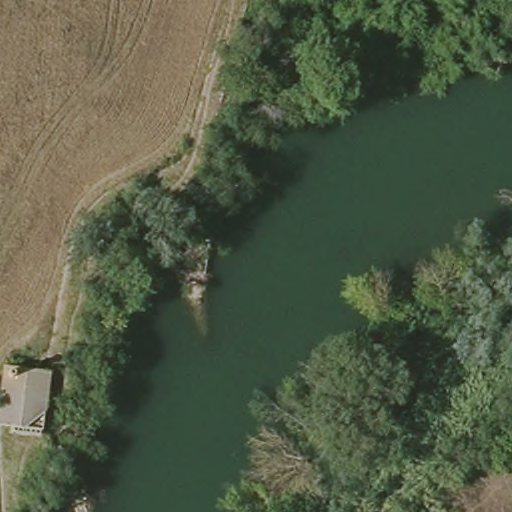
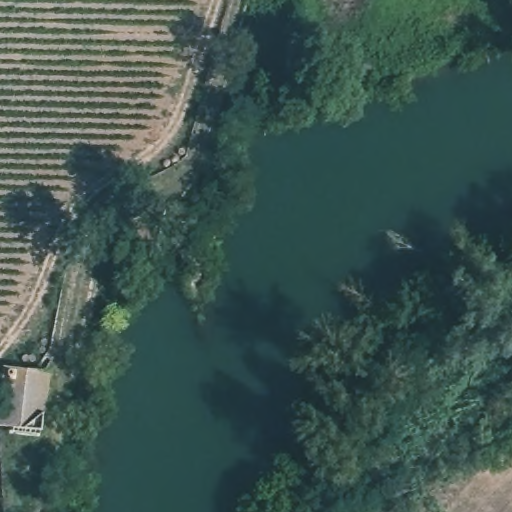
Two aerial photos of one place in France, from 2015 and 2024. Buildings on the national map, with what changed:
unchanged [(43,436),(0,428),(0,422),(10,365),(32,368),(55,373),(43,436)]

